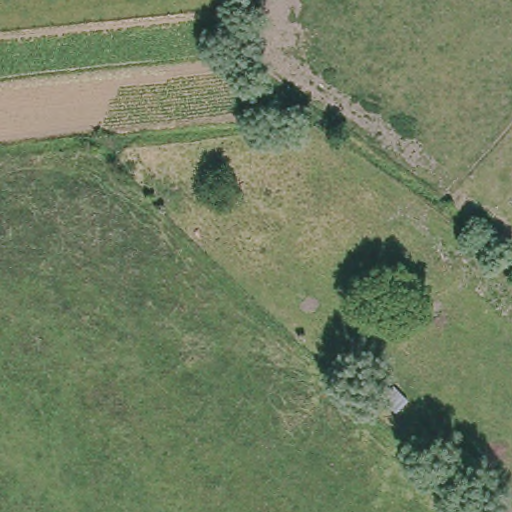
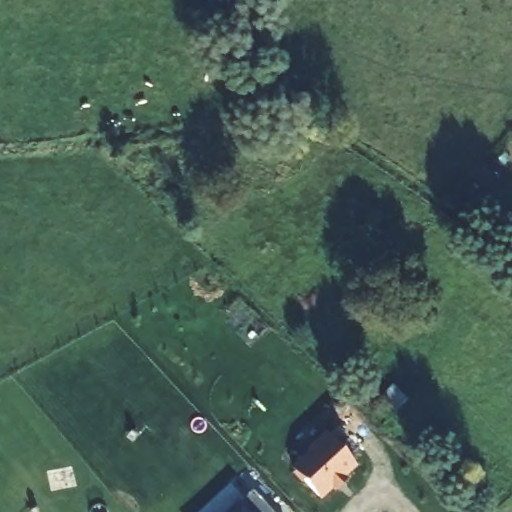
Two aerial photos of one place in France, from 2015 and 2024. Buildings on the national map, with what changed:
new [(342,476),(345,479),(334,489),(330,486),(318,496),(303,480),(302,481),(293,472),(295,471),(292,467),(310,451),(309,449),(325,434),(353,465),(342,476)]
new [(252,489),(273,512),(226,512),(252,489)]

